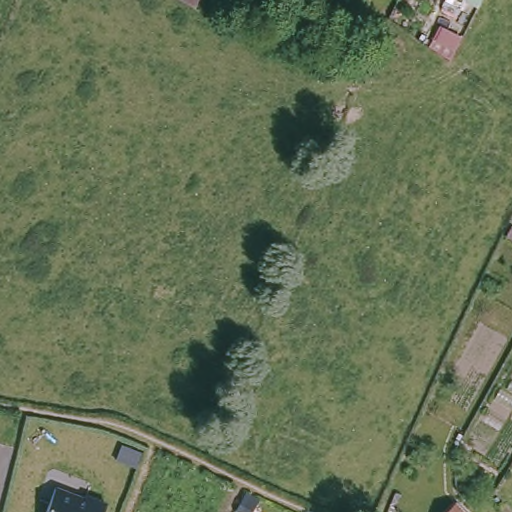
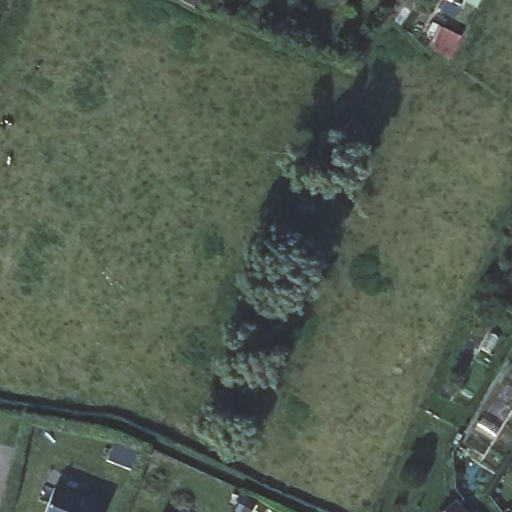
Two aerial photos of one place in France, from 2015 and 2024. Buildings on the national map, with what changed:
unchanged [(178,0),(197,0),(193,8),(178,0)]
unchanged [(102,512),(45,512),(54,487),(82,498),(83,495),(105,503),(102,512)]
unchanged [(461,502),(470,512),(450,512),(461,502)]

